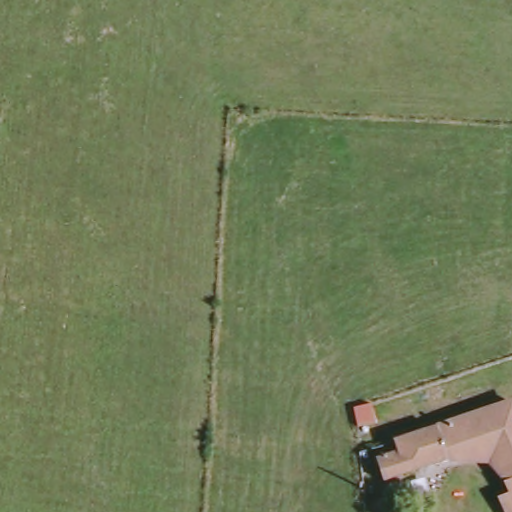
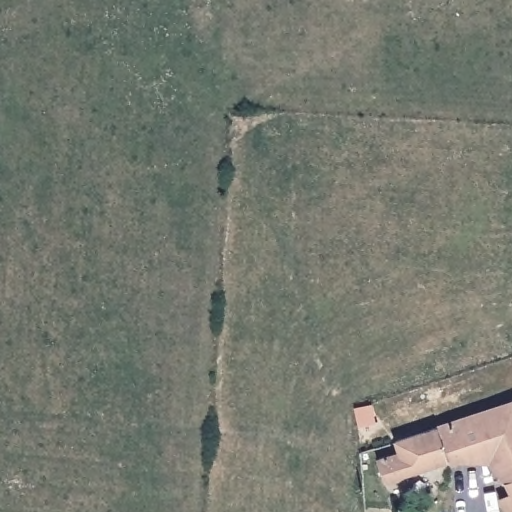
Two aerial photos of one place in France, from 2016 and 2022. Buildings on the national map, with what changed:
unchanged [(462,460),(457,458),(394,480),(385,458),(407,451),(403,440),(512,403),(512,471),(502,460),(462,460)]
unchanged [(512,488),(512,509),(508,495),(512,488)]

